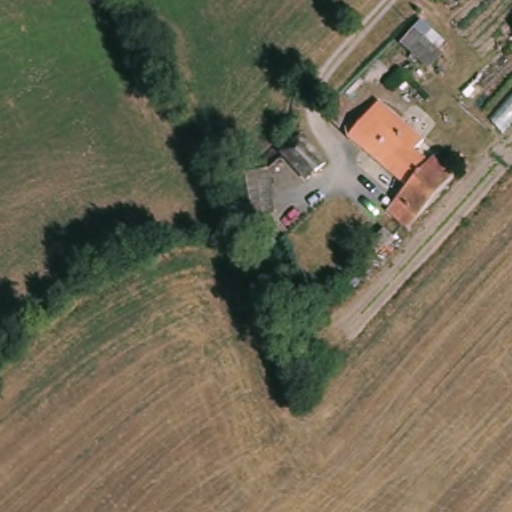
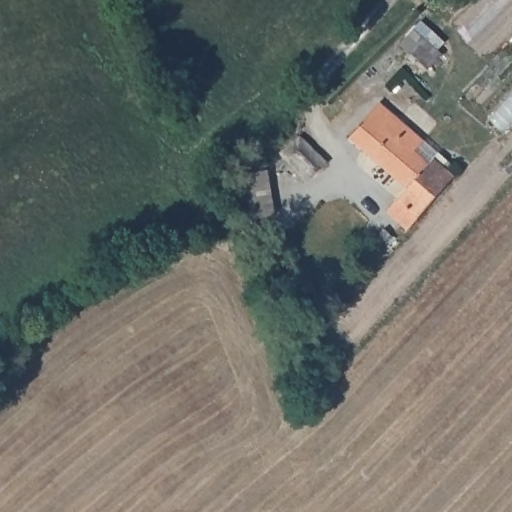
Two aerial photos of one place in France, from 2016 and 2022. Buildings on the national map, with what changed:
unchanged [(350,128),(384,100),(421,142),(424,146),(416,152),(390,171),(389,172),(350,128)]
unchanged [(325,146),(297,163),(282,137),(304,120),(325,146)]
unchanged [(378,210),(400,184),(389,172),(390,171),(416,152),(427,164),(435,158),(444,165),(452,179),(421,204),(393,228),(389,223),(378,210)]
unchanged [(352,241),(372,223),(381,230),(364,245),(356,252),(352,241)]

